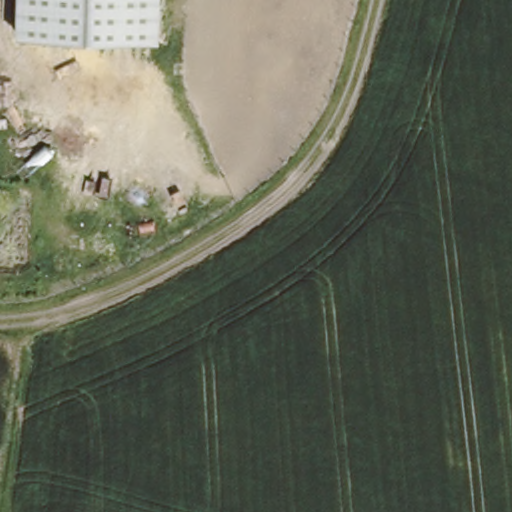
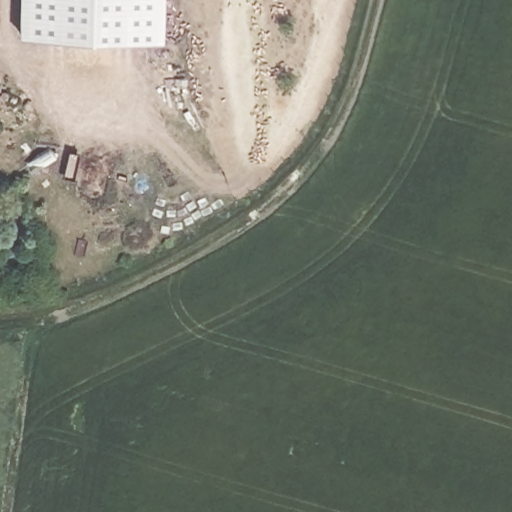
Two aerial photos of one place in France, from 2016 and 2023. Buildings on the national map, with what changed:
unchanged [(159,41),(18,33),(19,0),(161,0),(159,41)]

